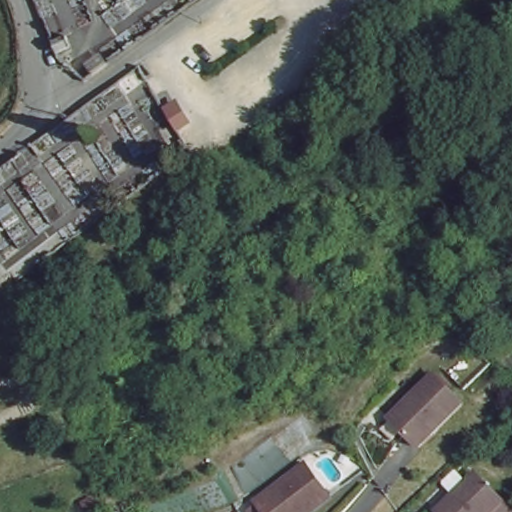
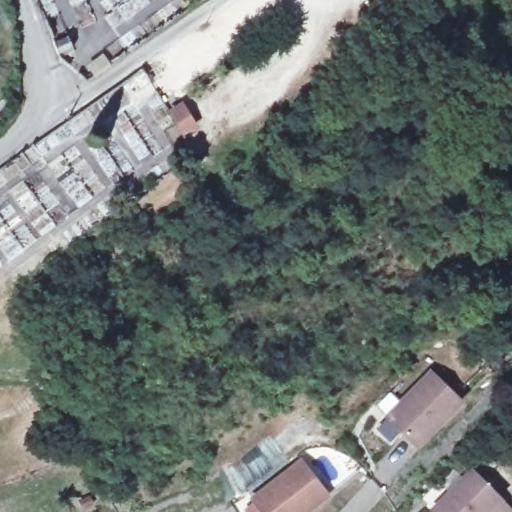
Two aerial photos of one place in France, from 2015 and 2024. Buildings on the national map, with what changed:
unchanged [(465,404),(421,450),(387,416),(430,371),(465,404)]
unchanged [(310,512),(266,512),(255,497),(306,456),(335,493),(310,512)]
unchanged [(433,512),(428,506),(469,467),(496,495),(509,509),(506,512),(433,512)]

